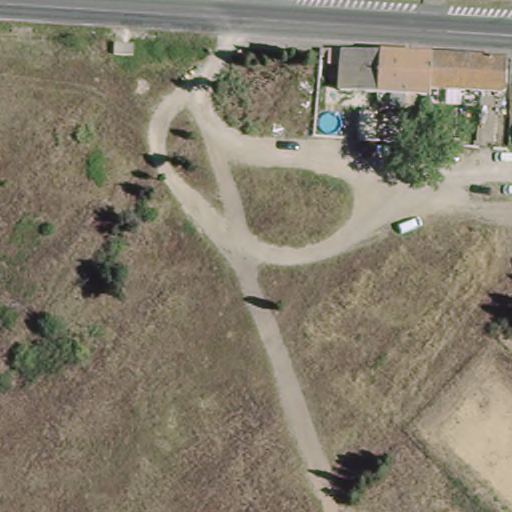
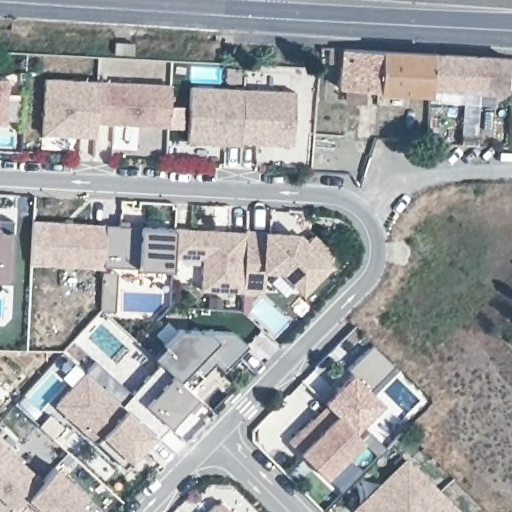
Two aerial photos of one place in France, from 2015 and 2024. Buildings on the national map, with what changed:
unchanged [(500,63),(500,67),(500,71),(500,75),(499,78),(499,81),(499,85),(499,88),(498,91),(495,93),(493,94),(492,94),(419,90),(419,97),(329,94),(330,67),(331,49),(501,56),(501,59),(500,63)]
new [(0,126),(0,70),(5,71),(4,93),(18,93),(17,116),(3,116),(3,126),(0,126)]
new [(44,75),(97,76),(96,118),(95,132),(73,131),(73,146),(42,145),(42,130),(44,75)]
new [(97,76),(171,80),(169,121),(96,118),(97,76)]
new [(236,144),(189,141),(192,89),(238,91),(236,144)]
new [(238,91),(290,93),(288,146),(236,144),(238,91)]
new [(10,219),(8,279),(0,278),(0,218),(10,219)]
new [(102,268),(29,264),(31,224),(104,226),(102,268)]
new [(137,267),(102,268),(104,226),(140,228),(174,231),(172,259),(171,270),(137,267)]
new [(240,294),(202,293),(202,260),(172,259),(174,231),(242,235),(240,294)]
new [(242,235),(292,237),(301,246),(309,238),(330,259),(299,292),(277,272),(262,272),(261,295),(240,294),(242,235)]
new [(209,307),(209,298),(221,298),(221,308),(209,307)]
new [(224,371),(214,363),(189,388),(198,397),(169,427),(160,438),(152,430),(122,404),(161,363),(153,356),(179,330),(209,332),(233,333),(247,346),(224,371)]
new [(84,370),(152,430),(122,464),(54,403),(84,370)]
new [(326,408),(319,400),(330,389),(334,393),(350,375),(381,405),(354,434),(363,442),(327,481),(290,446),(312,422),(326,408)]
new [(43,481),(56,467),(87,496),(72,512),(37,512),(25,501),(14,512),(0,499),(0,442),(43,481)]
new [(386,490),(382,487),(404,465),(451,512),(364,512),(386,490)]
new [(215,510),(223,508),(227,512),(213,512),(215,510)]

